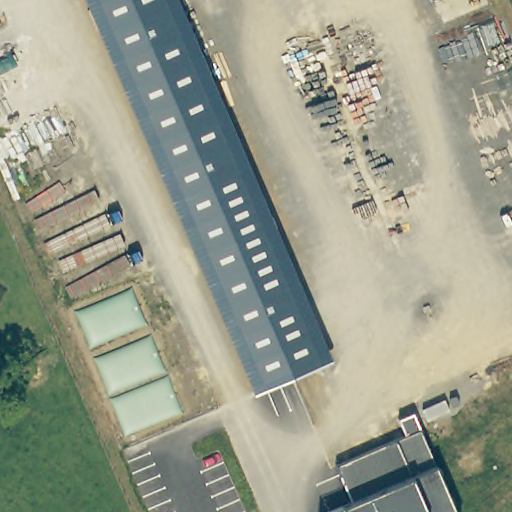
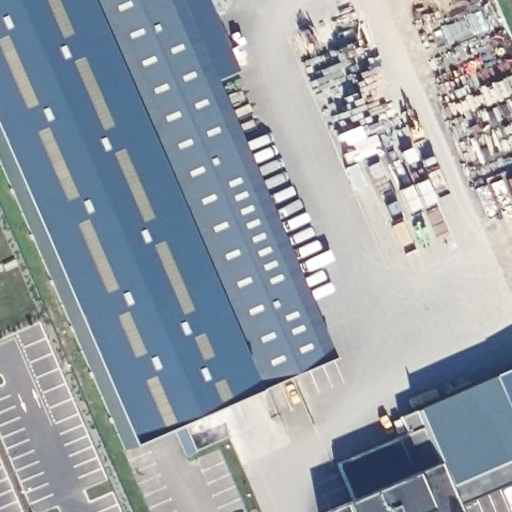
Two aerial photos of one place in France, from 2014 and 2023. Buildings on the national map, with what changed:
new [(255,393),(251,394),(190,421),(194,453),(185,457),(173,431),(123,450),(0,164),(0,0),(83,0),(255,393)]
unchanged [(332,360),(255,393),(83,0),(180,0),(332,360)]
new [(239,74),(215,84),(180,0),(208,0),(239,74)]
new [(436,467),(420,431),(413,413),(492,377),(512,369),(512,488),(455,512),(436,467)]
unchanged [(353,501),(338,466),(407,436),(399,419),(413,413),(420,431),(436,467),(455,512),(330,512),(344,506),(353,501)]

